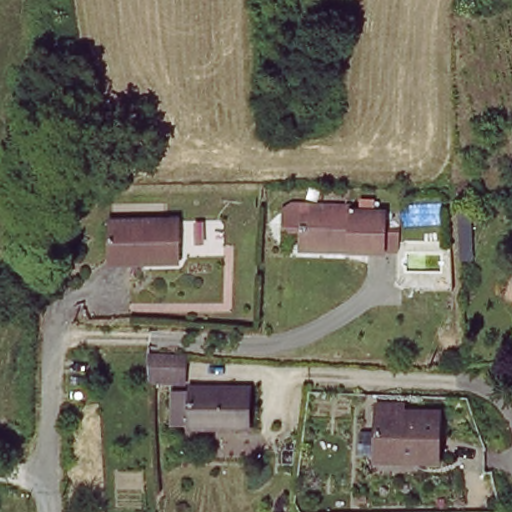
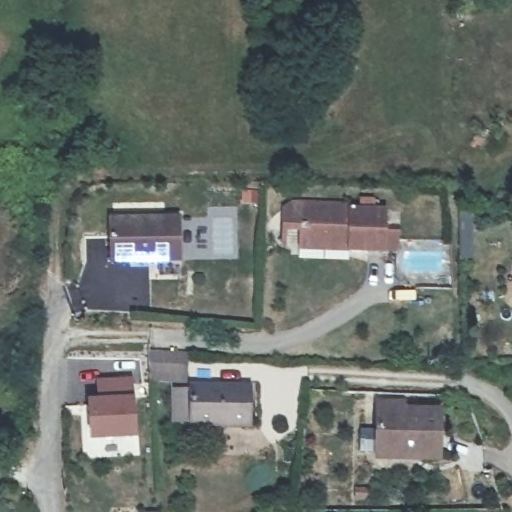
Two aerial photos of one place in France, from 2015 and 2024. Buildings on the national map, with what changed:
unchanged [(301,228),(301,223),(305,223),(305,207),(383,204),(385,245),(350,246),(301,248),(301,228)]
unchanged [(111,259),(109,215),(178,215),(179,257),(111,259)]
unchanged [(189,356),(186,377),(152,376),(151,354),(189,356)]
new [(98,399),(98,380),(131,379),(132,399),(135,438),(89,441),(88,400),(98,399)]
unchanged [(198,381),(214,381),(256,379),(258,421),(208,421),(198,421),(198,417),(180,417),(180,386),(198,386),(198,381)]
unchanged [(402,467),(403,451),(375,451),(377,398),(407,400),(408,409),(441,413),(440,468),(402,467)]

